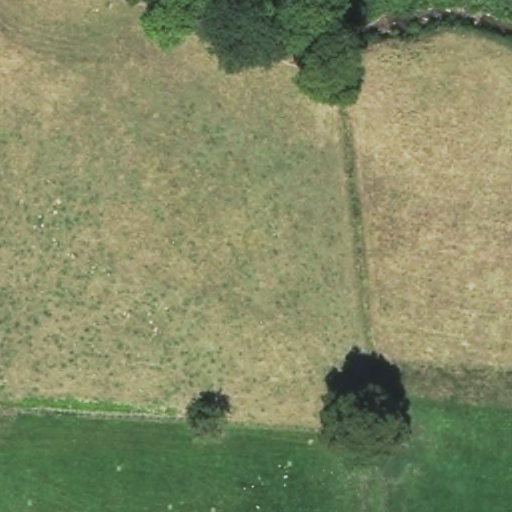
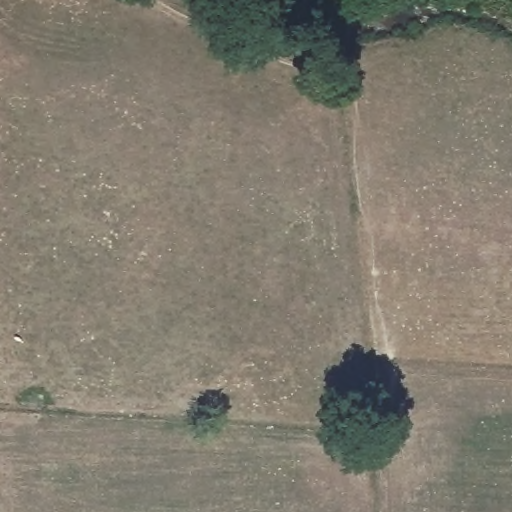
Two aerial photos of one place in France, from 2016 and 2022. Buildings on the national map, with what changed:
[]

